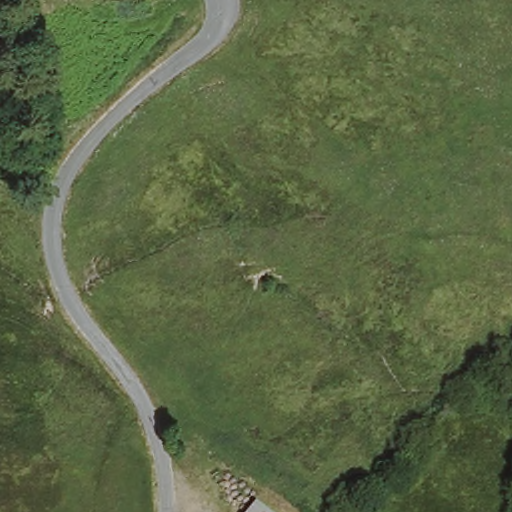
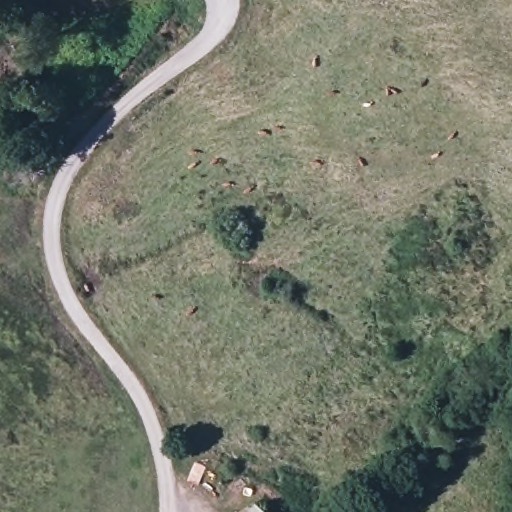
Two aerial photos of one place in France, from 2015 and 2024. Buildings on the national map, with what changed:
unchanged [(273,512),(248,512),(258,500),(273,512)]

